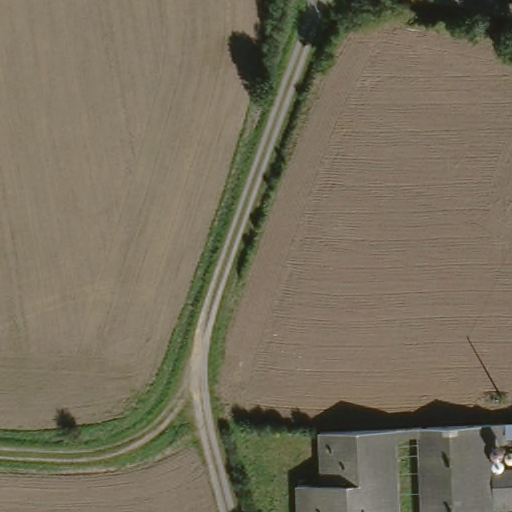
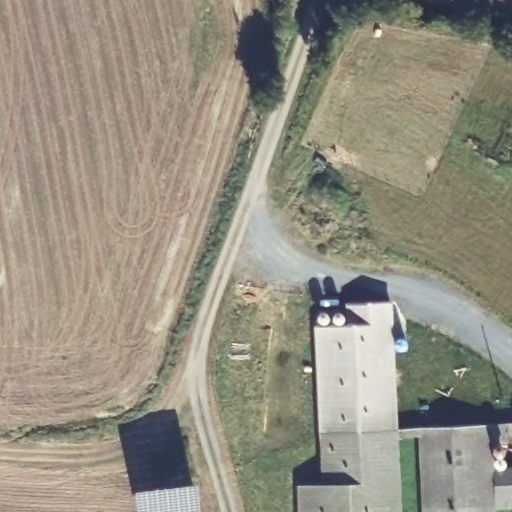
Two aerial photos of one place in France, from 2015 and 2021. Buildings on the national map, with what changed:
new [(316,327),(348,324),(348,304),(389,302),(396,434),(318,439),(316,327)]
unchanged [(414,432),(505,428),(507,471),(512,470),(512,512),(419,512),(414,432)]
unchanged [(295,491),(320,488),(318,439),(396,434),(400,512),(296,512),(295,491)]

